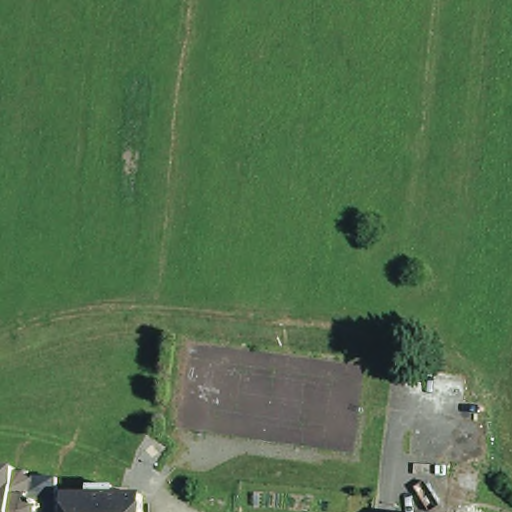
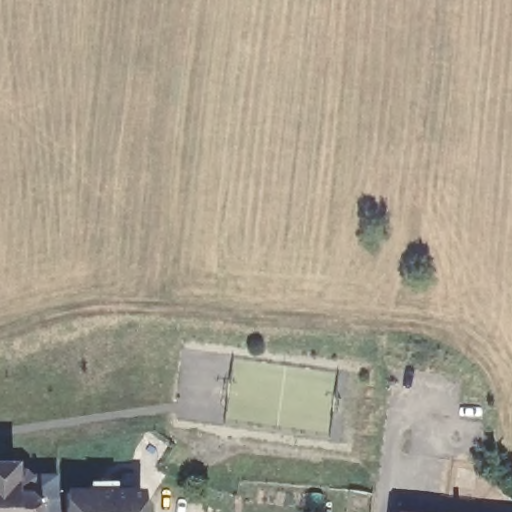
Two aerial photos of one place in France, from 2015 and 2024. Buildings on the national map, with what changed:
unchanged [(13,473),(18,473),(21,468),(26,471),(23,476),(28,478),(53,477),(53,487),(54,512),(0,512),(0,467),(13,467),(13,473)]
unchanged [(113,487),(113,495),(139,495),(139,512),(65,512),(64,495),(88,495),(88,487),(113,487)]

